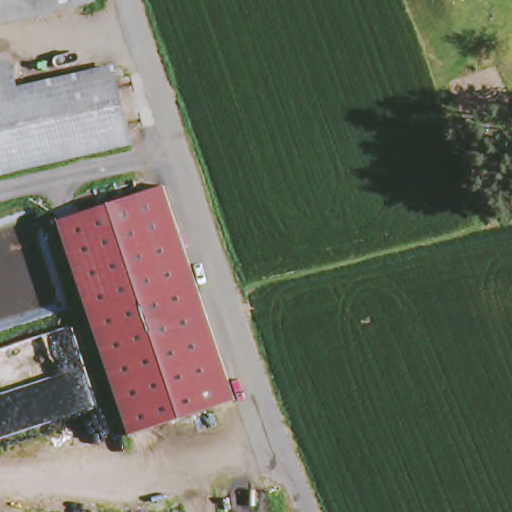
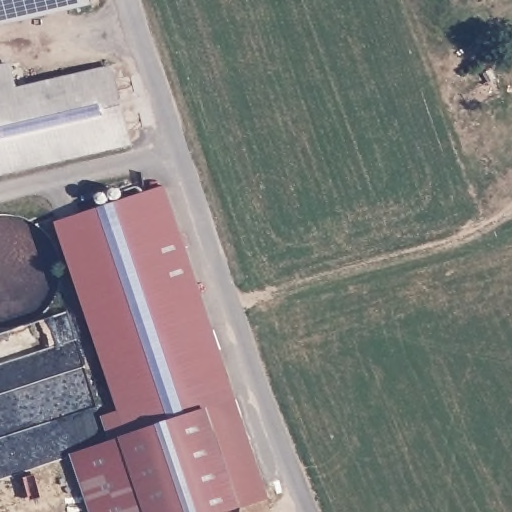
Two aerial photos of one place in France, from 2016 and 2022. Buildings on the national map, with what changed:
unchanged [(0,28),(0,0),(82,0),(83,2),(0,28)]
unchanged [(12,92),(107,67),(127,135),(0,172),(0,69),(5,67),(12,92)]
unchanged [(60,223),(163,186),(231,399),(128,435),(60,223)]
new [(72,454),(112,441),(103,416),(120,410),(128,435),(210,406),(243,506),(226,512),(91,512),(72,454)]

